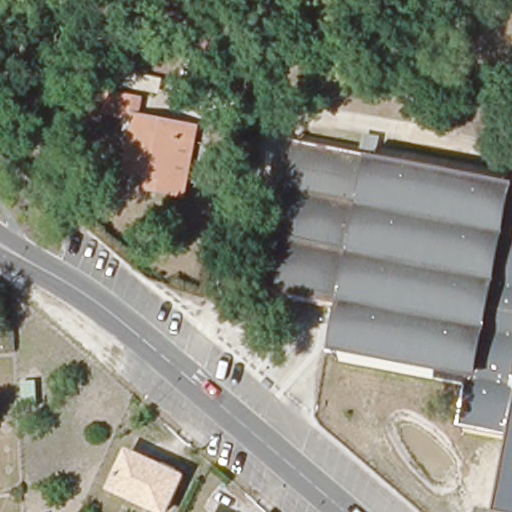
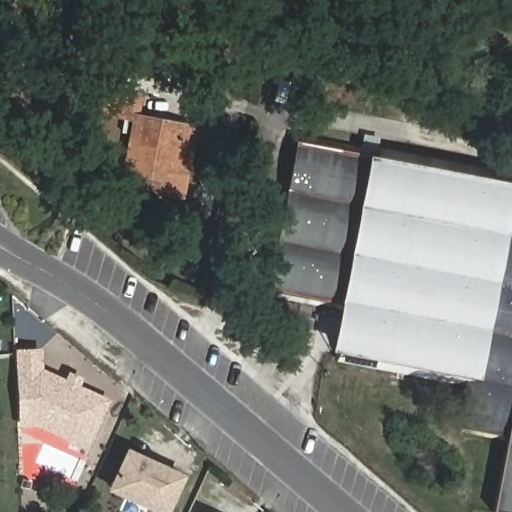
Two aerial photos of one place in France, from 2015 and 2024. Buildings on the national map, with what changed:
unchanged [(183,146),(175,184),(145,179),(130,175),(139,124),(110,118),(113,100),(143,106),(140,123),(197,135),(195,149),(183,146)]
unchanged [(496,490),(505,441),(460,432),(468,388),(335,361),(345,310),(269,295),(301,134),(376,148),(512,174),(512,493),(496,490)]
unchanged [(184,204),(141,195),(145,179),(175,184),(183,146),(195,149),(184,204)]
new [(15,349),(42,348),(43,368),(65,378),(68,371),(83,377),(80,385),(110,399),(87,450),(35,426),(18,427),(15,349)]
unchanged [(167,512),(165,512),(112,487),(126,459),(135,463),(139,456),(183,476),(167,512)]
unchanged [(502,512),(494,510),(496,490),(512,493),(512,512),(502,512)]

